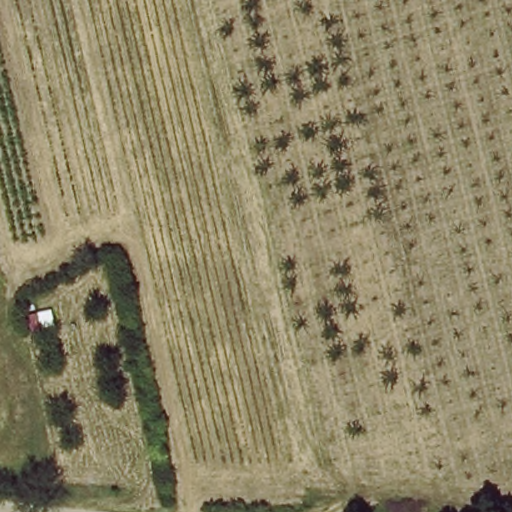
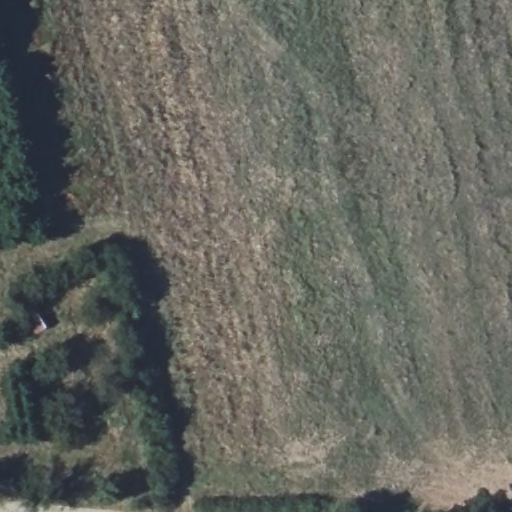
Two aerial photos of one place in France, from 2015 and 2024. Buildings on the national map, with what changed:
[]

